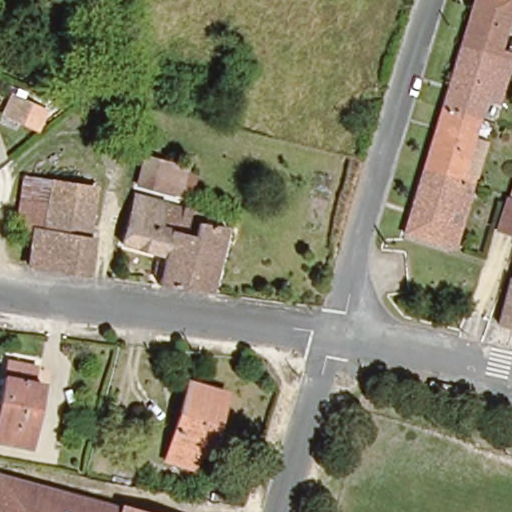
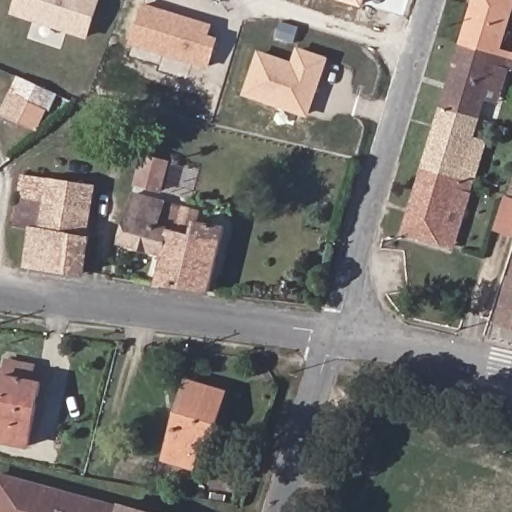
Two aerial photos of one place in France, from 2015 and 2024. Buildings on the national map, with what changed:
new [(101,0),(89,39),(12,13),(15,0),(101,0)]
new [(339,0),(367,0),(365,7),(339,0)]
unchanged [(512,58),(508,74),(496,71),(463,177),(474,180),(470,196),(458,194),(440,249),(403,237),(476,0),(512,0),(512,18),(501,55),(512,58)]
new [(131,45),(144,4),(213,24),(211,35),(220,37),(209,67),(131,45)]
new [(311,114),(307,117),(242,95),(258,50),(292,61),(297,46),(331,57),(311,114)]
unchanged [(25,97),(44,105),(35,123),(16,115),(25,97)]
unchanged [(143,157),(183,169),(177,191),(175,196),(136,185),(143,157)]
unchanged [(59,173),(100,178),(92,227),(52,221),(56,194),(59,173)]
unchanged [(512,227),(499,223),(509,189),(512,190),(512,227)]
unchanged [(99,229),(93,263),(92,270),(27,261),(33,225),(25,225),(15,224),(19,190),(30,191),(48,193),(56,194),(52,221),(92,227),(99,229)]
unchanged [(156,285),(164,255),(120,242),(133,194),(199,211),(197,220),(224,226),(206,291),(156,285)]
unchanged [(40,382),(33,446),(0,442),(0,387),(6,359),(32,363),(31,381),(40,382)]
unchanged [(166,457),(189,381),(225,391),(203,467),(166,457)]
unchanged [(117,510),(118,507),(135,512),(0,512),(0,480),(117,510)]

